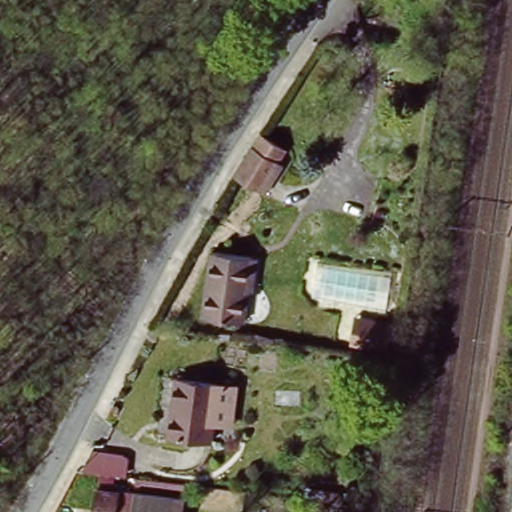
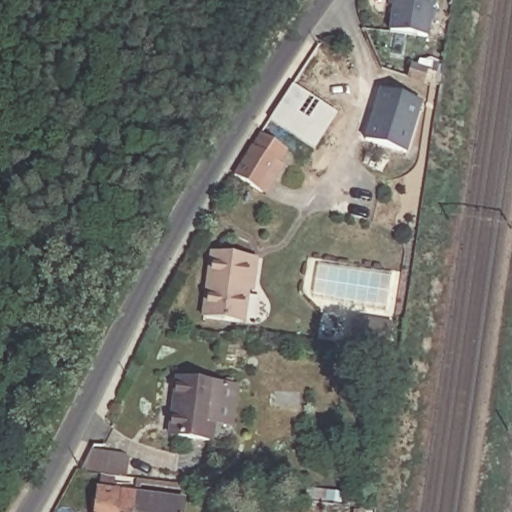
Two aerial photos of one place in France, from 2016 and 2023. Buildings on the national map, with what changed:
new [(430,0),(424,42),(387,36),(391,11),(387,10),(388,0),(430,0)]
new [(410,154),(365,140),(380,88),(425,101),(410,154)]
unchanged [(257,149),(282,165),(262,197),(237,180),(257,149)]
unchanged [(238,321),(197,316),(206,251),(246,256),(238,321)]
unchanged [(350,345),(357,320),(394,325),(388,356),(350,345)]
unchanged [(167,439),(175,382),(218,388),(237,390),(230,428),(212,424),(208,444),(167,439)]
unchanged [(90,493),(177,503),(175,512),(87,512),(90,493)]

